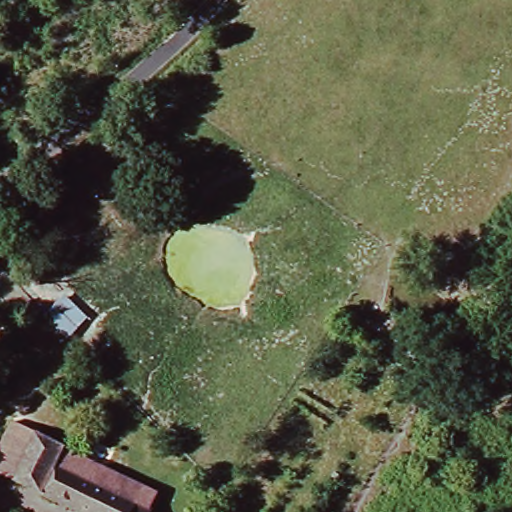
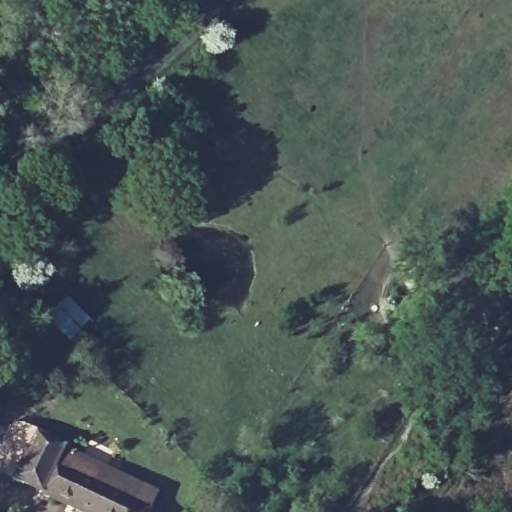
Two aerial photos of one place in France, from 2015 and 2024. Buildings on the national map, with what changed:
unchanged [(66,341),(41,318),(64,293),(88,317),(66,341)]
unchanged [(0,466),(0,462),(19,426),(41,437),(21,476),(0,466)]
unchanged [(159,496),(151,512),(89,512),(20,478),(21,476),(41,437),(159,496)]

